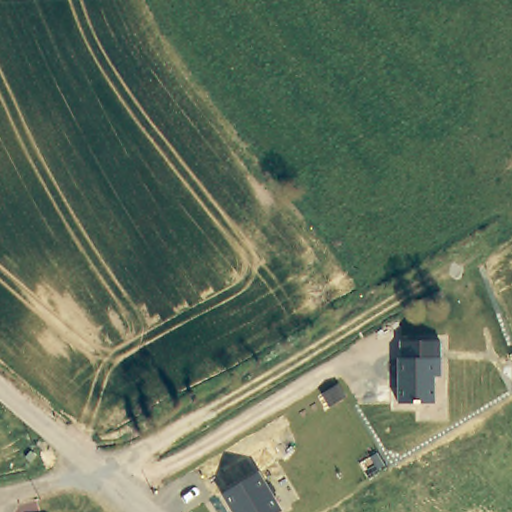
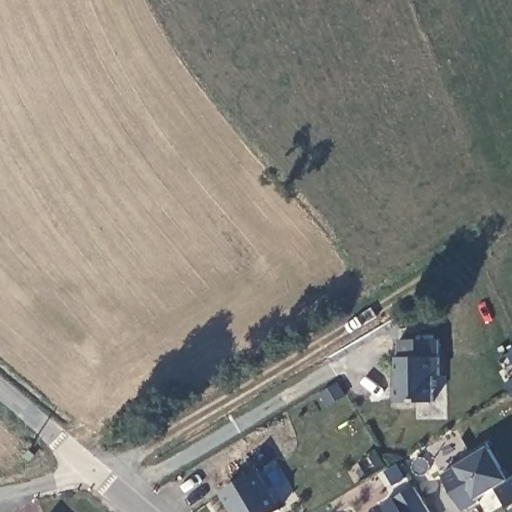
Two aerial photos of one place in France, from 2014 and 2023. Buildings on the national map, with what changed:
unchanged [(396,357),(401,357),(399,341),(440,340),(439,376),(433,376),(435,402),(397,402),(396,357)]
new [(510,480),(477,499),(480,502),(464,511),(441,476),(456,467),(488,448),(510,480)]
unchanged [(280,509),(276,512),(233,512),(221,493),(258,472),(280,509)]
new [(384,512),(381,507),(413,488),(429,512),(384,512)]

